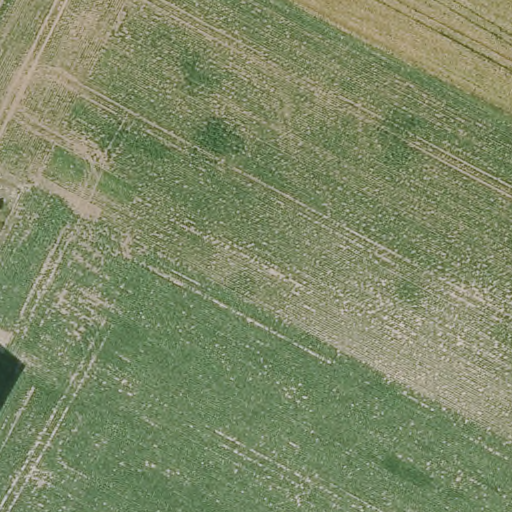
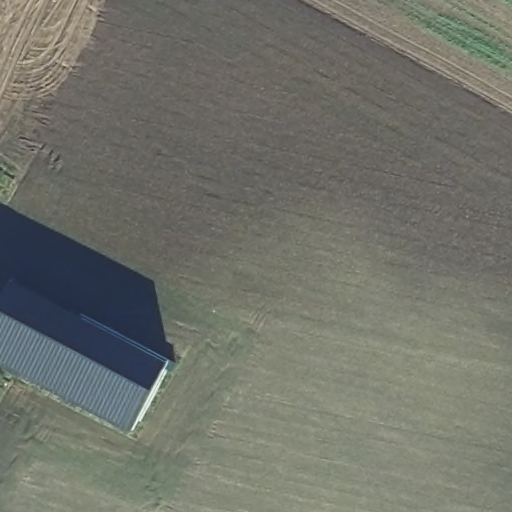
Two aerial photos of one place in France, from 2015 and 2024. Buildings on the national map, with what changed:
new [(12,288),(174,369),(170,378),(164,375),(132,438),(0,372),(0,311),(12,288)]

